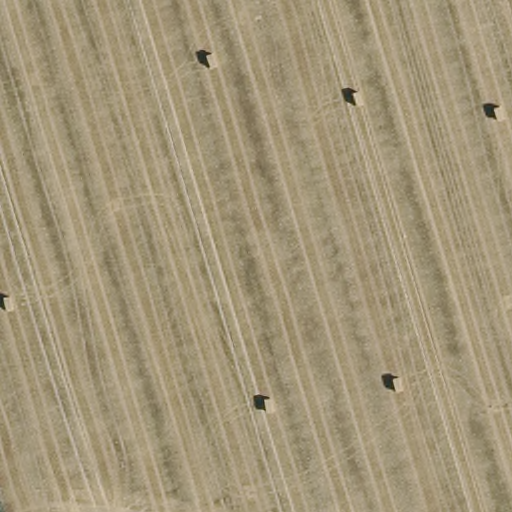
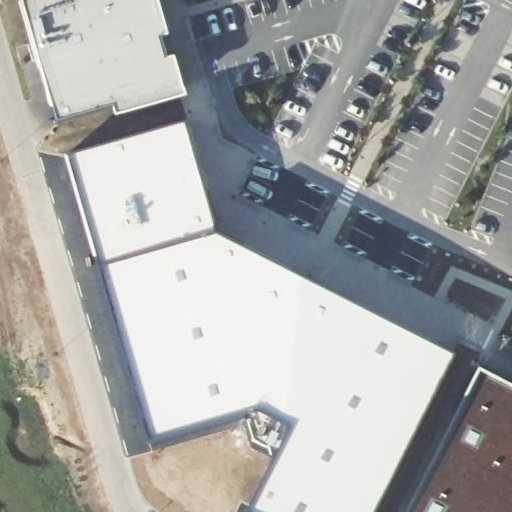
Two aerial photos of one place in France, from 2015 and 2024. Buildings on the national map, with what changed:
new [(59,138),(21,0),(163,0),(188,97),(59,138)]
new [(376,512),(248,512),(293,426),(260,409),(152,440),(69,155),(187,121),(219,233),(457,354),(376,512)]
new [(480,373),(512,389),(512,512),(411,512),(480,373)]

